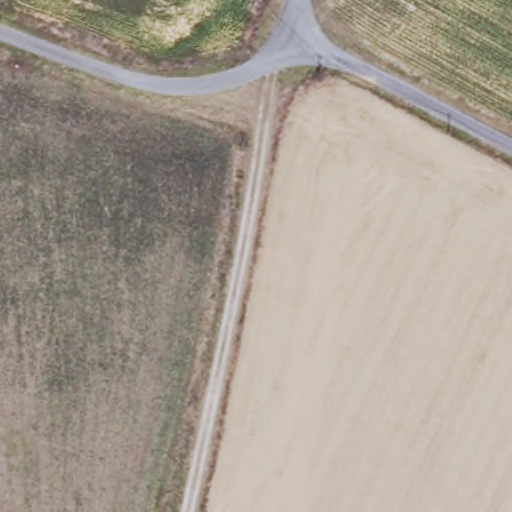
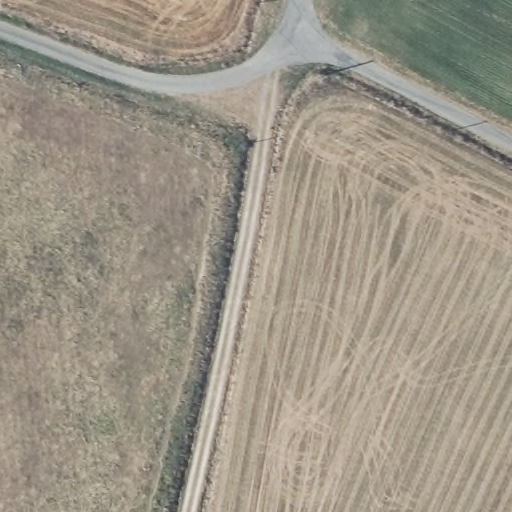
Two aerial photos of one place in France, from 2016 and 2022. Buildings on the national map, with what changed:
[]

